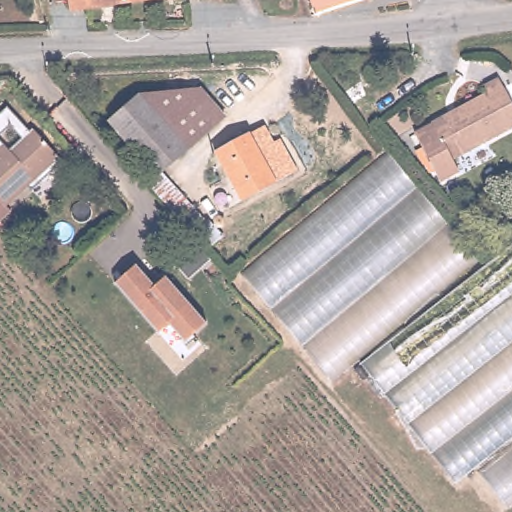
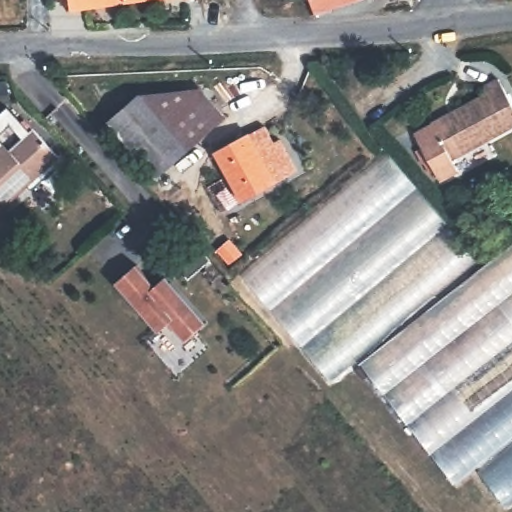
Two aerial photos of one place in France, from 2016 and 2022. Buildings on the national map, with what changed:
unchanged [(75,10),(73,0),(152,0),(75,10)]
unchanged [(356,2),(318,16),(313,0),(364,0),(356,2)]
unchanged [(447,178),(424,136),(442,126),(442,122),(482,100),(489,96),(485,89),(499,81),(512,102),(512,128),(508,131),(459,159),(464,169),(447,178)]
unchanged [(142,100),(208,94),(231,121),(167,174),(159,181),(147,166),(112,125),(142,100)]
unchanged [(54,165),(63,175),(41,195),(31,185),(8,206),(12,211),(0,225),(0,149),(5,144),(18,136),(22,139),(36,127),(61,156),(54,165)]
unchanged [(249,137),(277,182),(246,202),(218,156),(249,137)]
unchanged [(391,155),(487,266),(364,361),(336,381),(245,275),(391,155)]
unchanged [(159,181),(167,174),(211,221),(226,236),(210,249),(140,170),(147,166),(159,181)]
unchanged [(198,242),(209,255),(186,274),(175,261),(198,242)]
unchanged [(512,246),(512,440),(466,476),(454,485),(364,361),(487,266),(512,246)]
unchanged [(209,322),(187,341),(171,322),(160,331),(136,303),(118,282),(140,263),(158,285),(169,276),(209,322)]
unchanged [(512,509),(508,512),(492,512),(466,476),(512,440),(512,509)]

